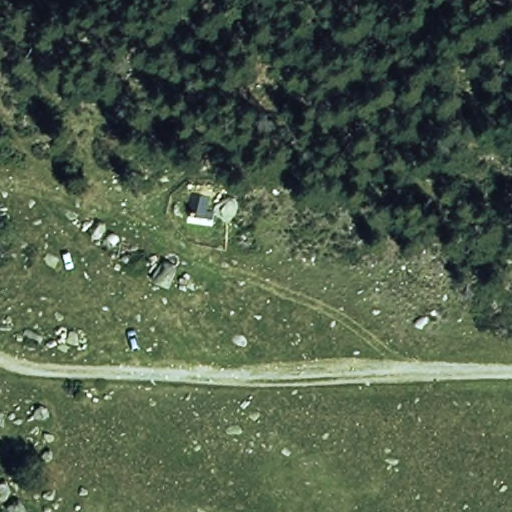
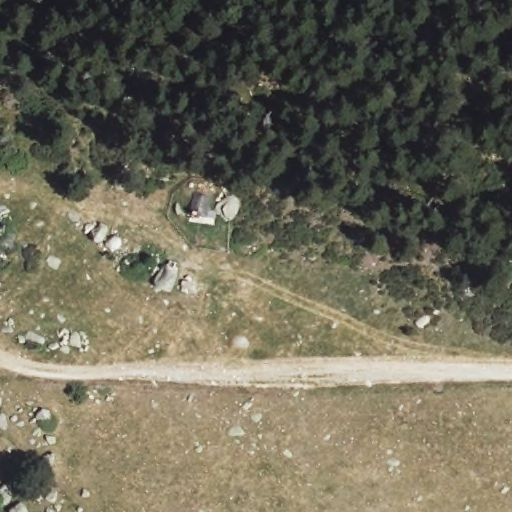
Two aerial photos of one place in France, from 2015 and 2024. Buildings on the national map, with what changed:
unchanged [(217,200),(215,219),(193,216),(195,196),(217,200)]

